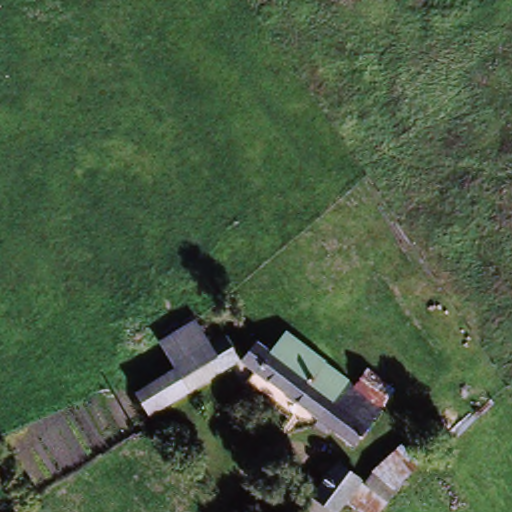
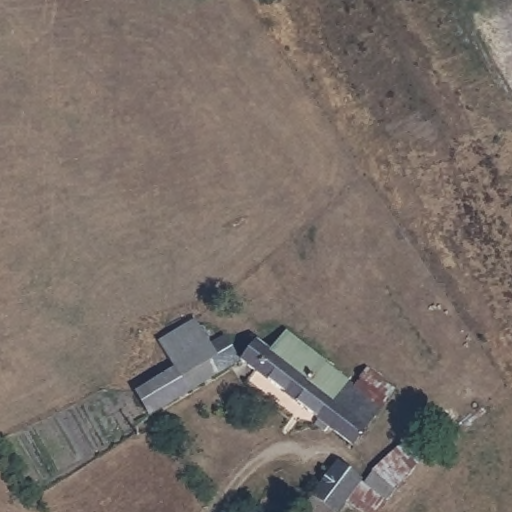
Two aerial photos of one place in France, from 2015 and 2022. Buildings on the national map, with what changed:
unchanged [(159,345),(198,329),(209,353),(170,371),(159,345)]
unchanged [(239,370),(252,348),(267,359),(279,339),(354,388),(365,370),(391,387),(379,405),(355,444),(239,370)]
unchanged [(209,353),(223,348),(235,372),(142,413),(130,387),(170,371),(209,353)]
unchanged [(402,445),(424,463),(380,512),(359,512),(345,502),(361,485),(402,445)]
unchanged [(305,505),(341,467),(361,485),(336,512),(312,512),(305,505)]

